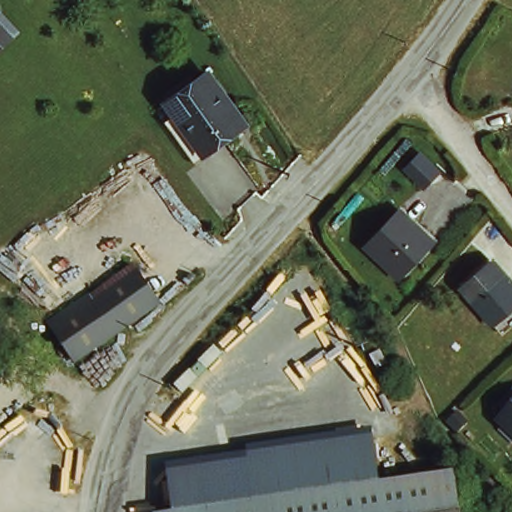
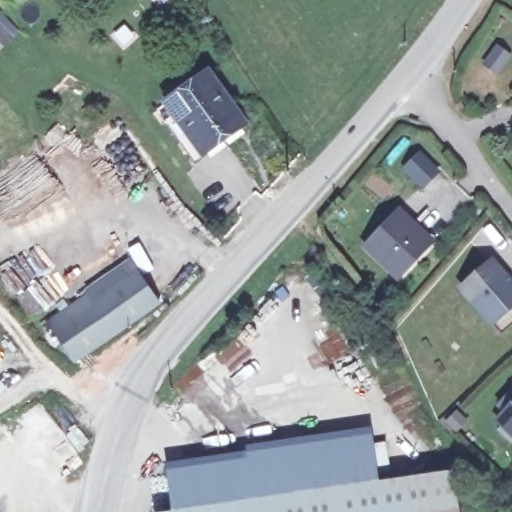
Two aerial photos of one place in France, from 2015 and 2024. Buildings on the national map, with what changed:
unchanged [(202,149),(168,102),(210,71),(245,120),(202,149)]
unchanged [(250,130),(201,165),(161,108),(168,102),(202,149),(245,120),(250,130)]
unchanged [(368,240),(398,211),(426,242),(394,270),(368,240)]
unchanged [(109,279),(112,283),(130,270),(157,303),(103,345),(77,364),(51,329),(107,286),(105,282),(109,279)]
unchanged [(499,271),(512,286),(512,320),(500,331),(469,298),(499,271)]
unchanged [(512,406),(512,422),(505,413),(512,406)]
unchanged [(309,457),(372,447),(379,489),(404,484),(451,478),(456,512),(178,512),(174,477),(309,457)]

